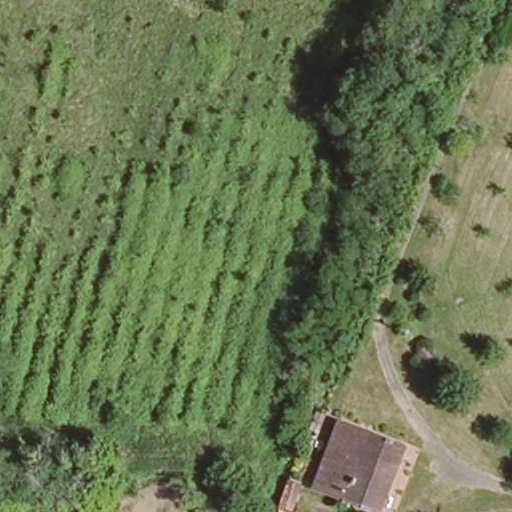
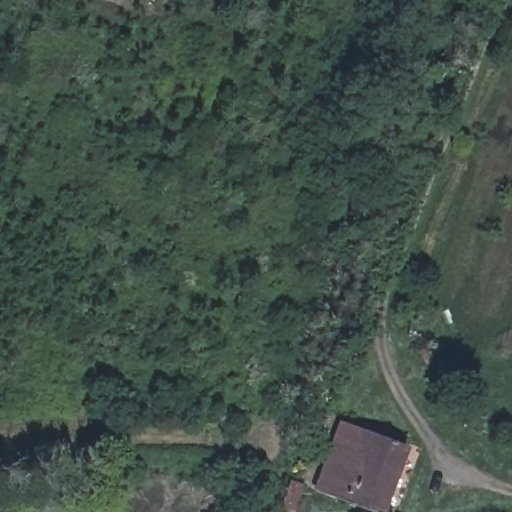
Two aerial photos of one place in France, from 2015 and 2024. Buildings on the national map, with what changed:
unchanged [(375,512),(340,498),(311,491),(337,420),(369,433),(405,445),(378,512),(375,512)]

